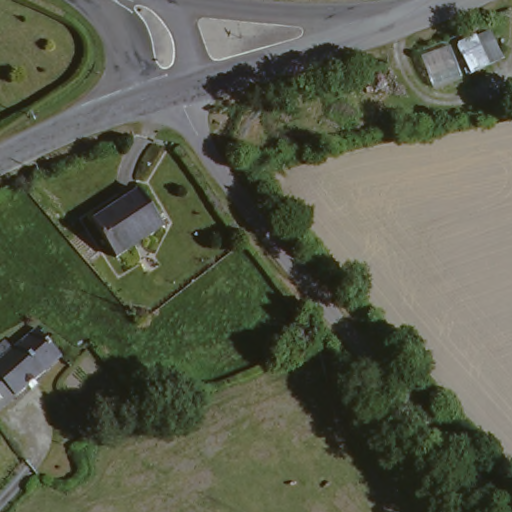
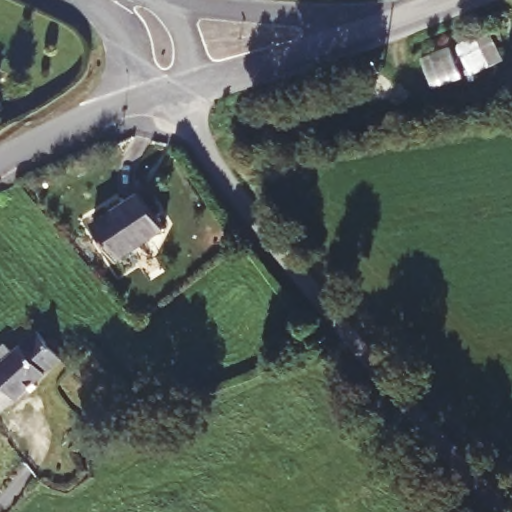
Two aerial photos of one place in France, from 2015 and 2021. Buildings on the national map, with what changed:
unchanged [(146,194),(169,231),(120,262),(97,224),(146,194)]
unchanged [(0,371),(13,361),(4,351),(18,341),(25,349),(49,328),(74,355),(0,417),(0,371)]
unchanged [(78,459),(65,472),(52,459),(64,446),(78,459)]

